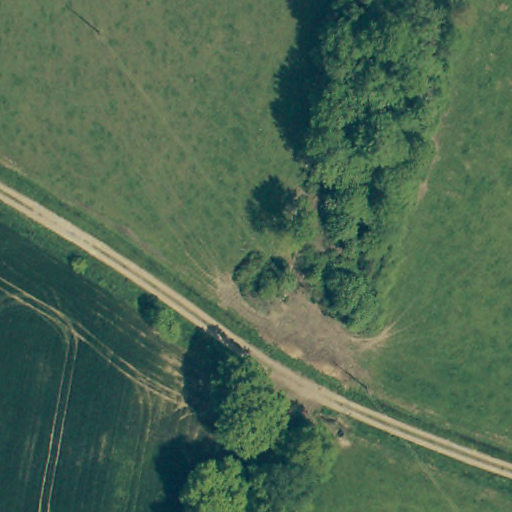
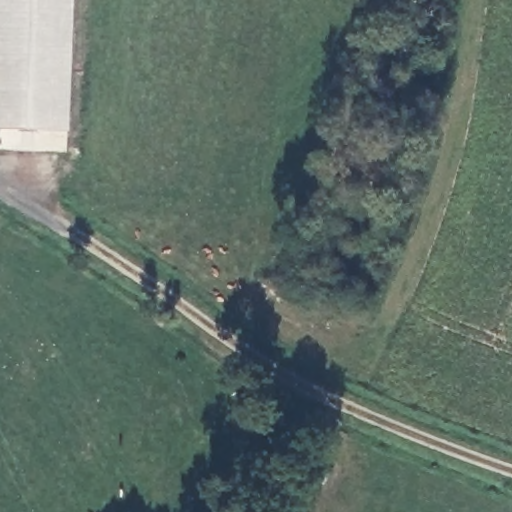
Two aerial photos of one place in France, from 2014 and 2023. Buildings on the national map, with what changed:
new [(70,131),(0,130),(0,0),(74,0),(70,131)]

